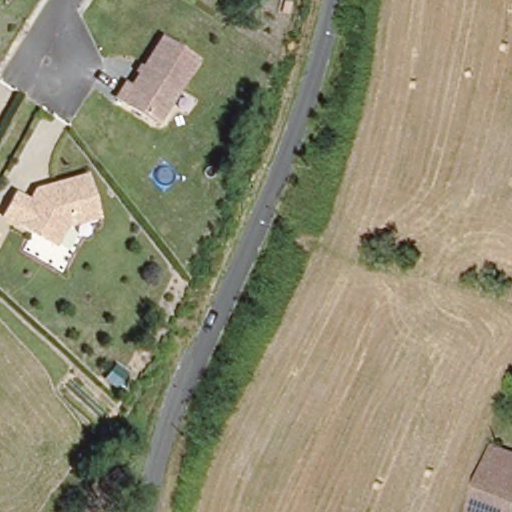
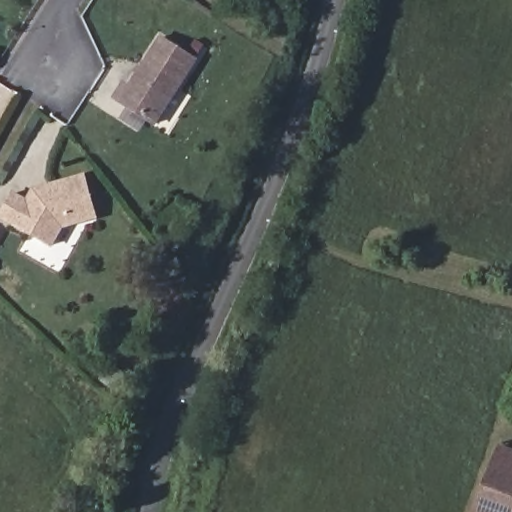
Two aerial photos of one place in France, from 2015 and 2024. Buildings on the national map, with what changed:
unchanged [(155,127),(116,104),(123,89),(128,91),(156,40),(192,60),(155,127)]
unchanged [(23,195),(77,177),(91,220),(57,231),(47,250),(0,227),(0,208),(5,197),(20,206),(23,195)]
unchanged [(500,452),(512,456),(512,512),(481,512),(500,452)]

